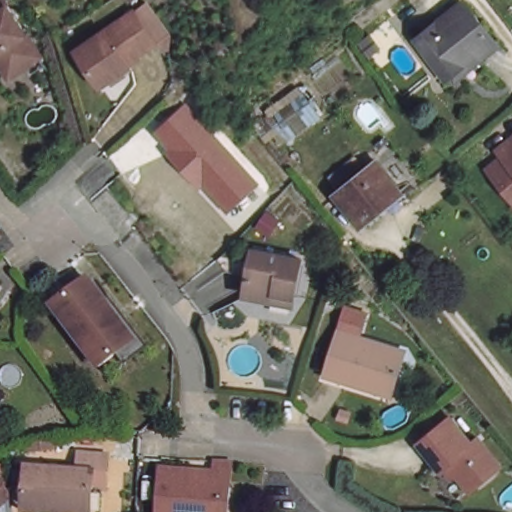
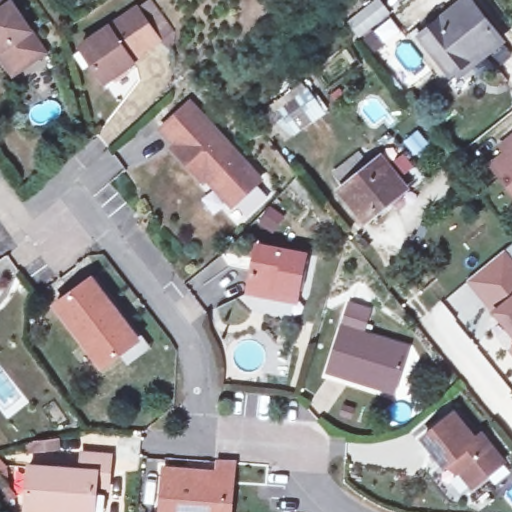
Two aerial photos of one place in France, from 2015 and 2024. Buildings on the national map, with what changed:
unchanged [(45,48),(14,70),(0,50),(0,0),(10,0),(45,48)]
unchanged [(500,41),(480,58),(477,50),(445,75),(425,49),(419,41),(469,0),(472,5),(500,41)]
unchanged [(154,35),(129,51),(132,57),(107,76),(82,40),(132,5),(154,35)]
unchanged [(375,33),(387,47),(376,55),(365,41),(375,33)]
unchanged [(322,107),(297,125),(286,112),(275,120),(267,109),(302,84),(322,107)]
unchanged [(207,182),(202,186),(167,150),(170,146),(157,131),(189,102),(264,181),(232,210),(207,182)]
unchanged [(507,153),(502,144),(512,137),(512,194),(491,164),(507,153)]
unchanged [(372,176),(384,169),(405,200),(367,228),(344,194),(349,190),(338,179),(360,161),(372,176)]
unchanged [(303,257),(295,293),(279,289),(275,300),(249,291),(252,270),(257,271),(261,249),(303,257)]
new [(512,258),(512,335),(492,312),(467,280),(505,250),(512,258)]
unchanged [(140,347),(118,366),(107,355),(92,365),(48,305),(83,280),(85,282),(90,279),(140,347)]
unchanged [(369,393),(327,377),(339,335),(347,310),(364,316),(357,340),(400,353),(390,392),(370,386),(369,393)]
new [(512,346),(512,353),(509,349),(512,346)]
unchanged [(471,445),(479,438),(498,466),(472,487),(451,464),(442,470),(421,443),(450,418),(471,445)]
unchanged [(92,511),(82,510),(17,504),(21,465),(69,470),(70,453),(100,456),(97,484),(83,482),(82,492),(92,492),(92,511)]
unchanged [(230,512),(160,512),(165,470),(218,474),(220,463),(234,465),(230,512)]

